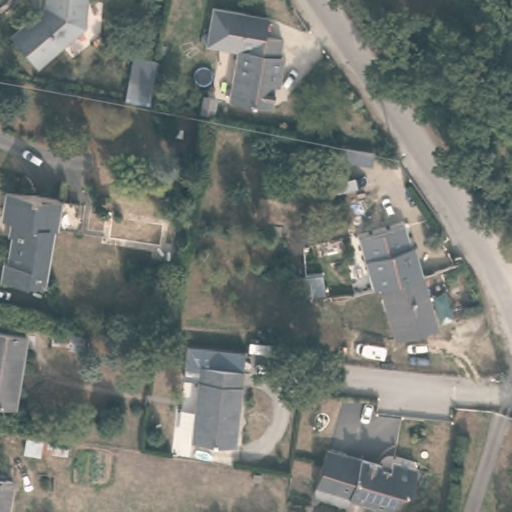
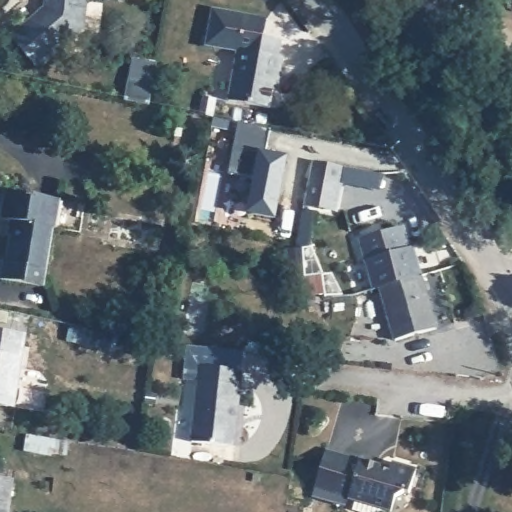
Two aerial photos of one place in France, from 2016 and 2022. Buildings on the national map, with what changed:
unchanged [(12,39),(45,9),(46,0),(87,0),(85,27),(39,69),(12,39)]
unchanged [(277,60),(282,61),(280,79),(274,78),(268,112),(226,104),(235,54),(204,48),(212,10),(243,16),(266,21),(262,39),(280,42),(277,60)]
unchanged [(131,90),(135,68),(159,73),(155,94),(131,90)]
new [(247,214),(255,179),(229,173),(239,124),(271,129),(267,152),(289,156),(275,219),(247,214)]
new [(345,167),(337,213),(305,205),(314,161),(345,167)]
unchanged [(0,281),(0,276),(3,262),(7,263),(14,221),(2,219),(7,190),(86,204),(81,233),(53,228),(44,288),(0,281)]
unchanged [(410,257),(413,256),(422,285),(438,338),(397,350),(381,296),(380,296),(374,298),(365,269),(358,249),(381,242),(388,240),(404,236),(410,257)]
unchanged [(51,347),(52,330),(86,334),(85,350),(51,347)]
unchanged [(0,405),(0,332),(27,336),(16,407),(0,405)]
unchanged [(192,441),(200,366),(244,370),(235,446),(192,441)]
unchanged [(42,453),(42,456),(23,453),(26,433),(44,436),(69,440),(67,456),(42,453)]
unchanged [(406,490),(397,495),(392,510),(315,488),(327,445),(382,464),(382,467),(391,469),(393,461),(418,468),(411,492),(406,490)]
unchanged [(254,481),(255,473),(262,474),(262,481),(254,481)]
unchanged [(14,480),(9,512),(0,512),(0,478),(14,480)]

